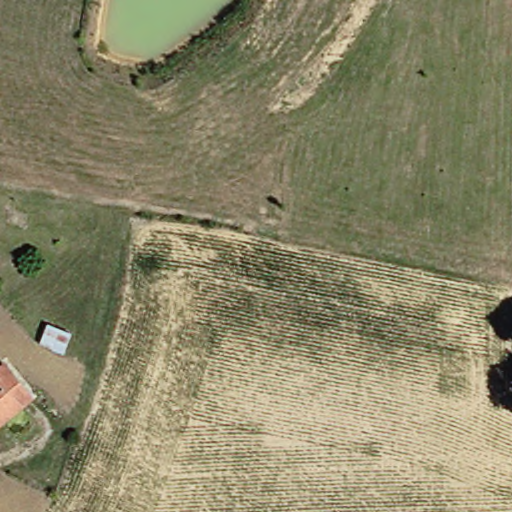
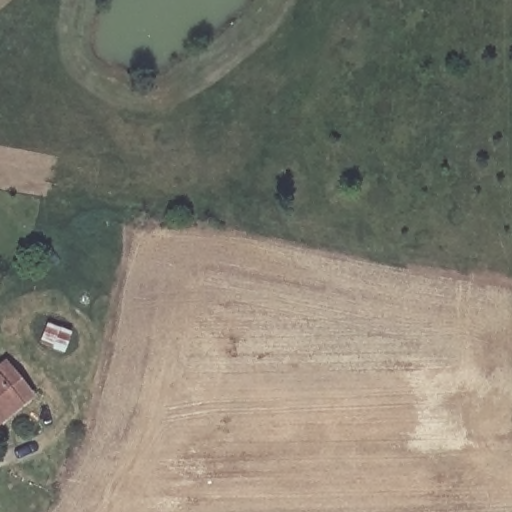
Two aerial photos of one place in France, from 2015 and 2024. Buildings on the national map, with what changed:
unchanged [(10,367),(33,395),(0,421),(0,375),(10,367)]

